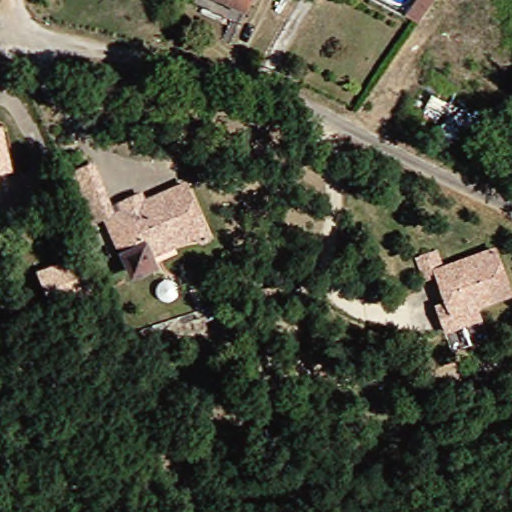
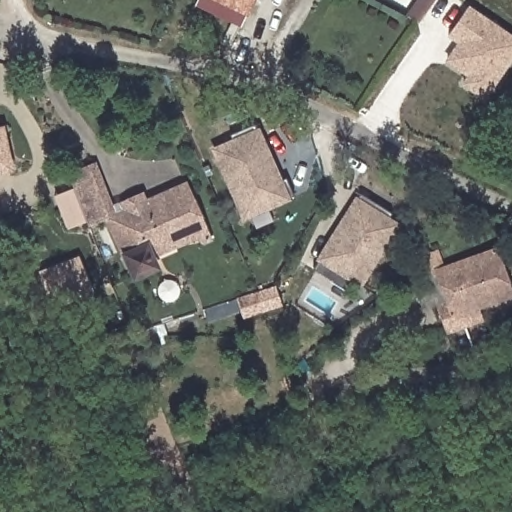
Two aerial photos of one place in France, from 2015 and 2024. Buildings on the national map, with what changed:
unchanged [(241,16),(208,0),(249,0),(241,16)]
new [(418,0),(435,0),(418,25),(407,17),(418,0)]
new [(461,83),(466,75),(444,61),(456,43),(447,36),(467,4),(512,35),(512,60),(483,99),(461,83)]
unchanged [(1,128),(5,149),(8,170),(0,171),(0,128),(1,128)]
new [(286,182),(294,200),(245,222),(214,155),(232,147),(229,140),(253,128),(270,165),(280,185),(286,182)]
unchanged [(80,209),(64,170),(84,162),(100,201),(104,211),(84,219),(80,209)]
unchanged [(139,262),(140,266),(139,270),(137,273),(134,277),(129,277),(125,277),(121,275),(119,271),(117,267),(118,262),(121,259),(124,257),(107,217),(119,212),(116,205),(135,197),(139,205),(172,192),(183,188),(199,225),(203,234),(193,239),(138,261),(139,262)]
new [(345,222),(362,195),(394,214),(390,220),(398,225),(362,286),(353,280),(347,290),(316,271),(334,241),(345,222)]
unchanged [(442,327),(433,304),(442,301),(431,267),(491,247),(507,292),(472,304),(476,316),(442,327)]
unchanged [(56,267),(72,261),(87,296),(48,312),(33,277),(56,267)]
unchanged [(214,295),(230,288),(247,282),(267,273),(273,292),(255,300),(237,307),(234,298),(218,305),(201,312),(197,302),(214,295)]

